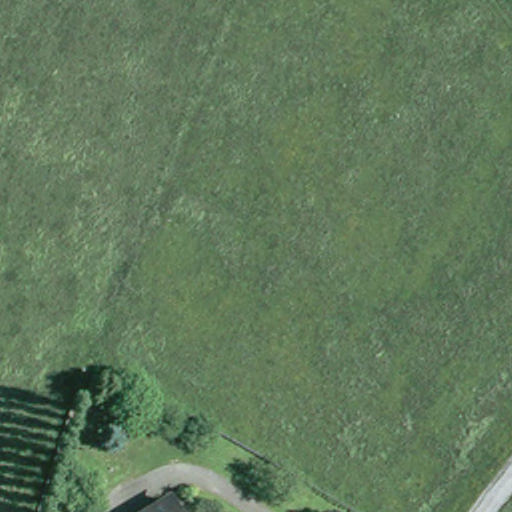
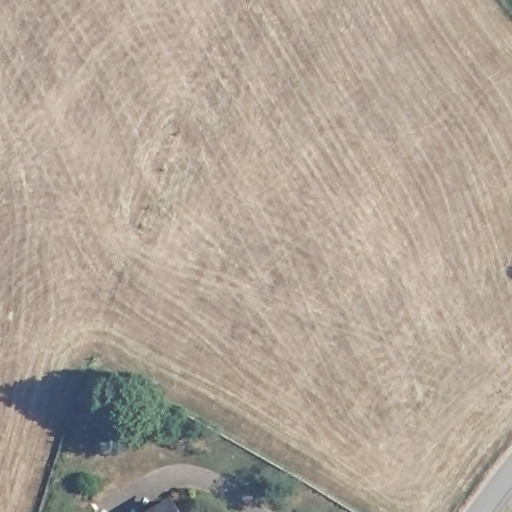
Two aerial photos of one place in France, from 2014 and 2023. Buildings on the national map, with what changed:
unchanged [(171,501),(178,512),(152,512),(171,501)]

